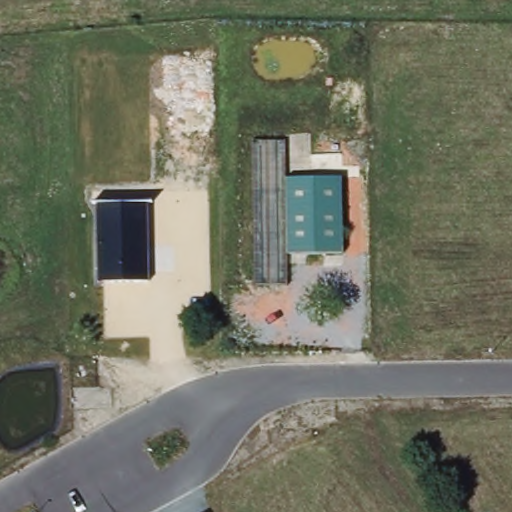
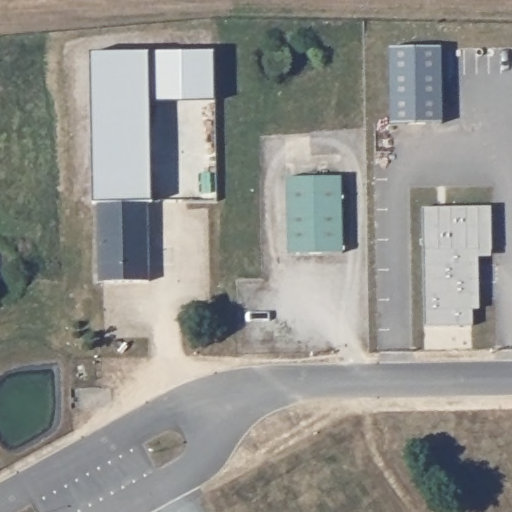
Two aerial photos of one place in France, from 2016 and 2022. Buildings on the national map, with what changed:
new [(441,47),(442,124),(391,124),(390,48),(441,47)]
new [(97,202),(94,202),(91,53),(216,50),(216,101),(150,102),(152,203),(150,203),(97,202)]
new [(342,175),(345,252),(287,253),(286,177),(342,175)]
unchanged [(97,202),(150,203),(149,280),(98,282),(97,202)]
new [(492,207),(492,250),(472,250),(473,325),(425,326),(422,208),(492,207)]

